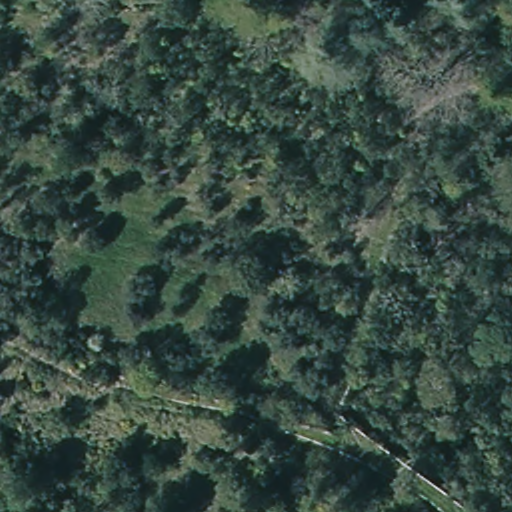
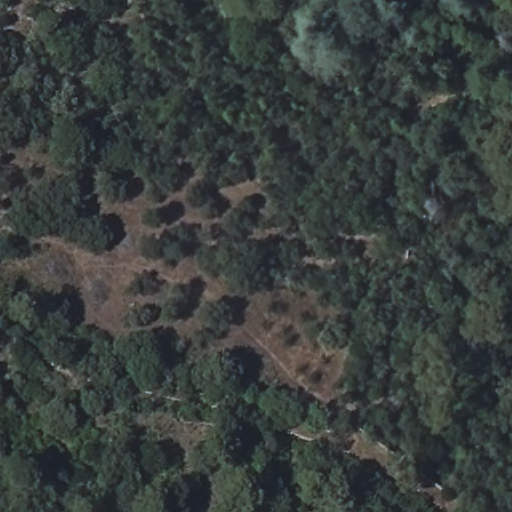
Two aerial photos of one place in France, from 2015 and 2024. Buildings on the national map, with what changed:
[]

